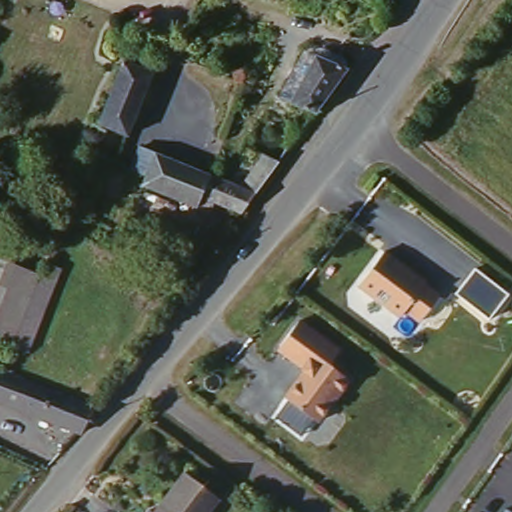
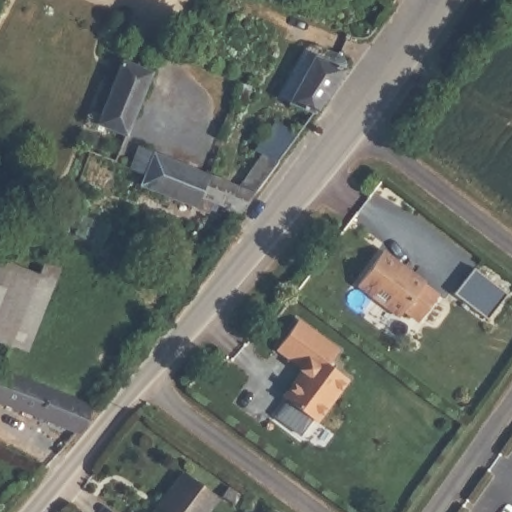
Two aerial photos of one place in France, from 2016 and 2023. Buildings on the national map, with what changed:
unchanged [(285,98),(311,53),(342,69),(312,110),(285,98)]
unchanged [(89,154),(85,153),(120,61),(149,72),(112,163),(89,154)]
unchanged [(144,182),(148,170),(135,165),(144,144),(210,170),(198,204),(144,182)]
unchanged [(222,200),(217,208),(212,206),(210,209),(198,204),(210,170),(241,183),(265,149),(281,158),(271,173),(243,210),(222,200)]
unchanged [(389,249),(445,293),(422,323),(363,284),(389,249)]
unchanged [(0,345),(0,270),(2,263),(37,275),(26,303),(7,348),(0,345)]
unchanged [(26,303),(37,275),(42,263),(57,269),(24,353),(7,348),(26,303)]
unchanged [(305,318),(345,344),(331,361),(355,376),(323,418),(288,394),(305,365),(282,349),(305,318)]
unchanged [(7,373),(92,406),(79,434),(75,432),(0,404),(0,371),(7,373)]
unchanged [(215,494),(201,512),(148,512),(181,468),(215,494)]
unchanged [(236,492),(231,500),(219,493),(225,484),(236,492)]

